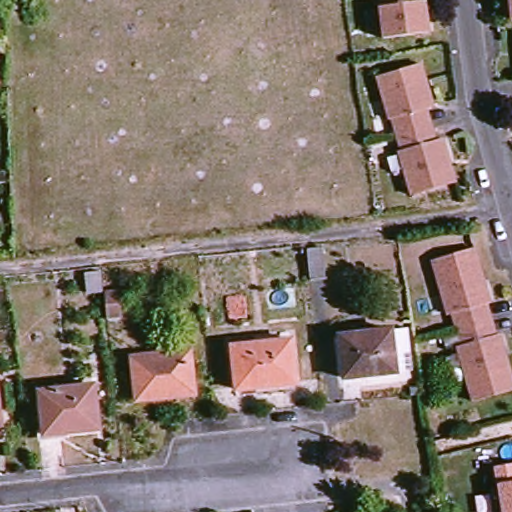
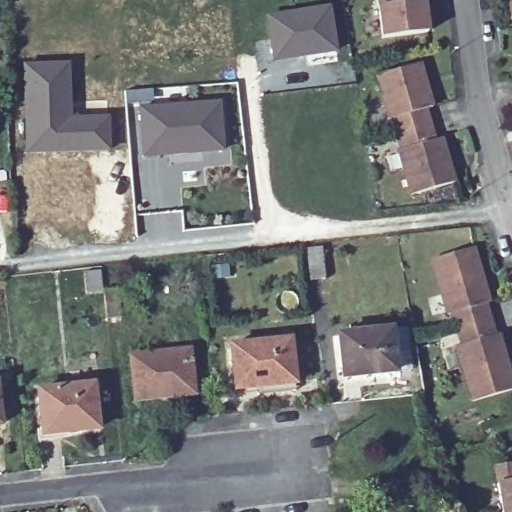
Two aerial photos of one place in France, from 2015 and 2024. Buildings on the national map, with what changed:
unchanged [(422,30),(380,35),(375,4),(377,3),(377,0),(419,0),(422,30)]
unchanged [(509,0),(512,0),(512,18),(511,18),(509,0)]
new [(331,2),(338,51),(271,64),(263,14),(331,2)]
unchanged [(433,105),(427,107),(435,137),(442,135),(455,180),(412,192),(398,149),(401,147),(392,117),(389,117),(377,73),(420,61),(433,105)]
new [(72,64),(72,101),(111,101),(111,152),(30,152),(28,64),(72,64)]
new [(147,153),(146,106),(225,104),(226,151),(205,152),(164,152),(147,153)]
unchanged [(490,305),(486,307),(494,337),(499,336),(512,381),(512,391),(472,402),(457,349),(461,346),(452,317),(448,317),(432,261),(473,249),(490,305)]
unchanged [(106,290),(120,288),(122,315),(109,316),(106,290)]
unchanged [(396,369),(343,375),(339,332),(391,327),(396,369)]
unchanged [(236,391),(231,347),(291,341),(295,385),(236,391)]
unchanged [(137,398),(132,353),(191,347),(195,392),(137,398)]
unchanged [(99,427),(44,433),(39,388),(95,383),(99,427)]
unchanged [(512,460),(512,512),(501,512),(492,463),(512,460)]

